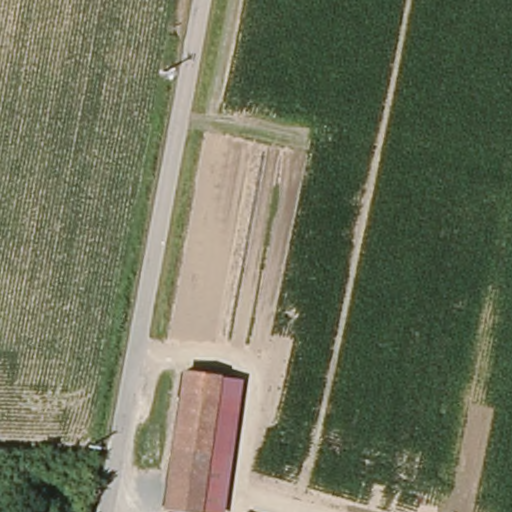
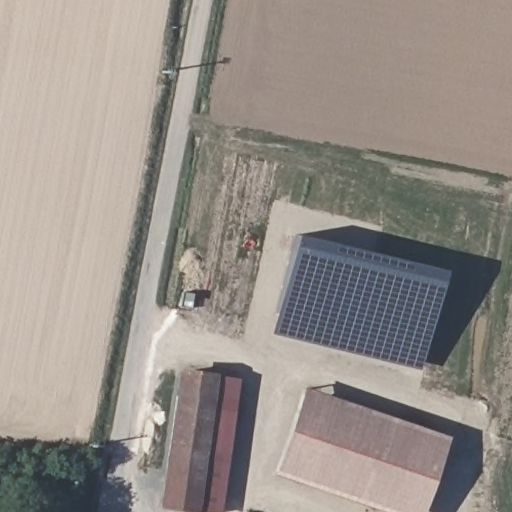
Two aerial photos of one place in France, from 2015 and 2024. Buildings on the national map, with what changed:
new [(419,371),(269,334),(295,234),(445,271),(419,371)]
new [(176,369),(216,374),(216,376),(239,379),(221,512),(184,512),(157,509),(176,369)]
new [(422,512),(383,512),(272,475),(302,387),(448,437),(422,512)]
demolished [(152,477),(166,395),(207,402),(197,485),(152,477)]
demolished [(207,402),(223,405),(210,487),(197,485),(207,402)]

